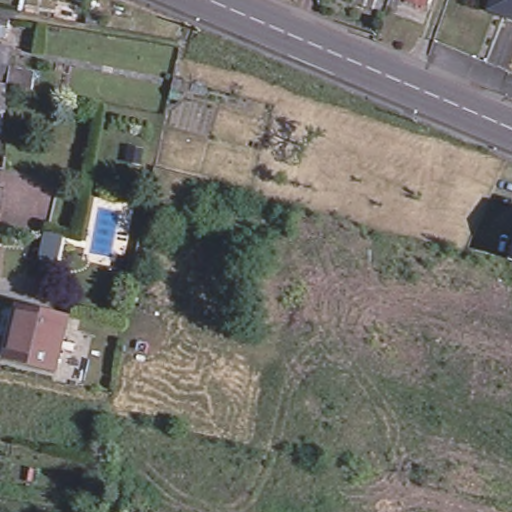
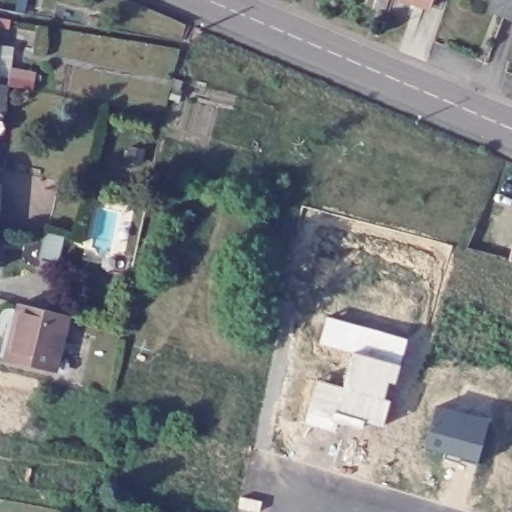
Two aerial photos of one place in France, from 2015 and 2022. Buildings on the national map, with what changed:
unchanged [(353,0),(388,0),(382,18),(351,7),(353,0)]
unchanged [(427,9),(398,0),(430,0),(427,9)]
unchanged [(490,7),(493,0),(512,0),(512,16),(490,7)]
unchanged [(3,73),(5,64),(35,70),(33,86),(12,82),(5,81),(3,102),(1,128),(0,128),(0,73),(3,73)]
unchanged [(45,233),(62,237),(56,264),(39,259),(44,239),(45,233)]
unchanged [(68,314),(55,369),(7,357),(20,303),(68,314)]
new [(407,339),(396,385),(389,384),(385,401),(390,403),(384,429),(339,416),(338,421),(307,414),(316,380),(344,388),(353,354),(320,345),(327,318),(407,339)]
new [(487,422),(479,462),(427,448),(439,410),(487,422)]

